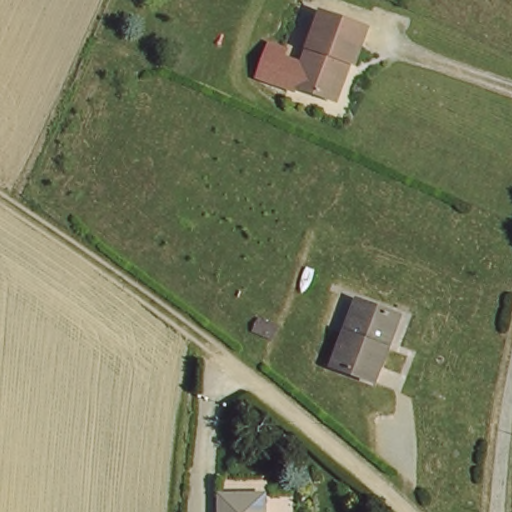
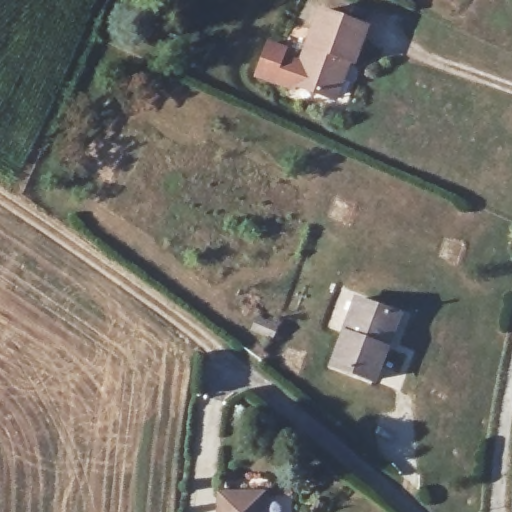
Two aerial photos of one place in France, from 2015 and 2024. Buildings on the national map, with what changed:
unchanged [(354,60),(343,55),(330,90),(294,77),(321,5),(368,22),(354,60)]
unchanged [(395,314),(385,345),(391,349),(381,382),(339,367),(361,302),(395,314)]
unchanged [(270,499),(269,512),(227,512),(229,495),(270,499)]

